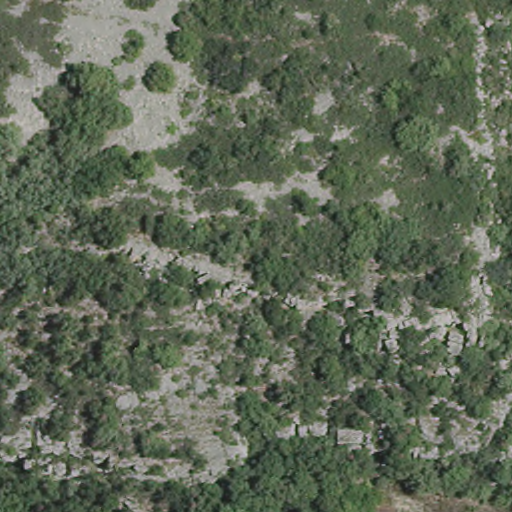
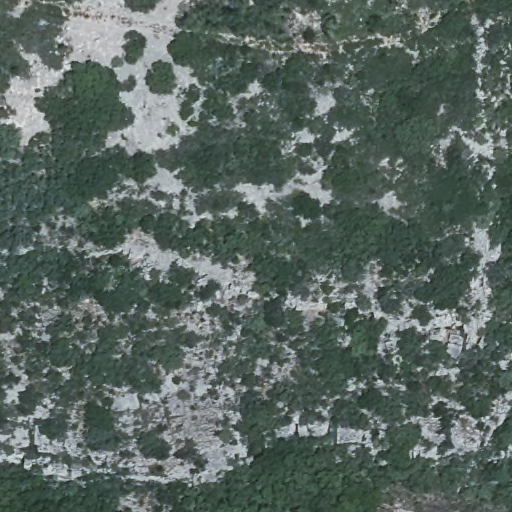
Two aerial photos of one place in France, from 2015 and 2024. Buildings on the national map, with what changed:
unchanged [(366,512),(366,505),(401,507),(400,512),(366,512)]

